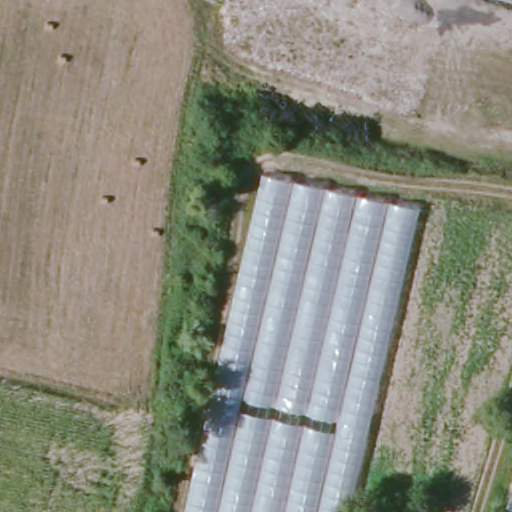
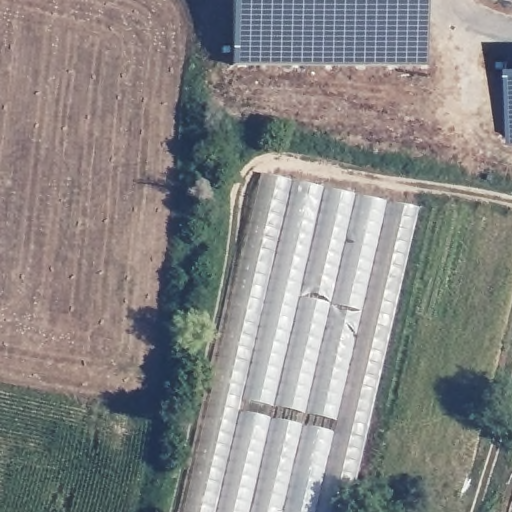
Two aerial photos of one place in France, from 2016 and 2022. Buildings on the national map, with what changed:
new [(233,0),(425,0),(426,66),(235,65),(233,0)]
new [(512,63),(512,88),(511,62),(512,63)]
unchanged [(420,210),(350,512),(184,512),(263,176),(420,210)]
unchanged [(512,491),(512,512),(506,512),(512,491)]

